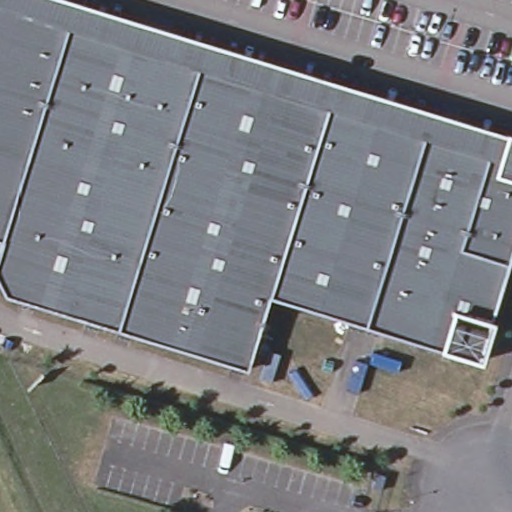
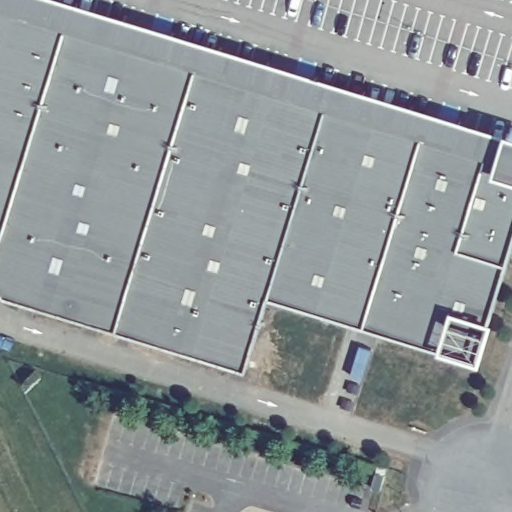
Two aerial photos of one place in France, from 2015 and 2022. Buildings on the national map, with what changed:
unchanged [(0,4),(0,0),(77,0),(512,133),(512,160),(0,4)]
unchanged [(275,296),(252,370),(10,296),(0,276),(0,261),(7,241),(0,239),(0,4),(512,160),(512,269),(483,360),(275,296)]
unchanged [(385,480),(380,495),(372,492),(376,478),(385,480)]

